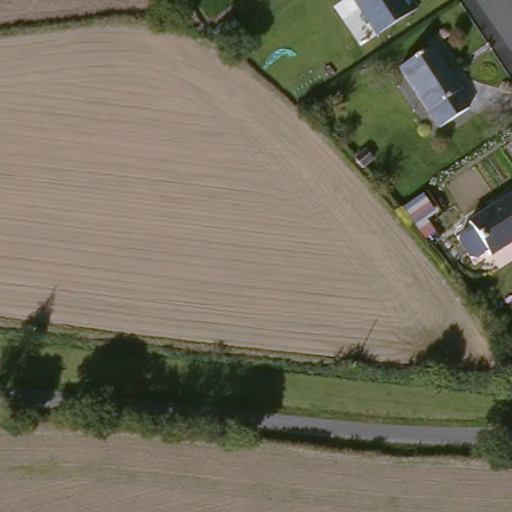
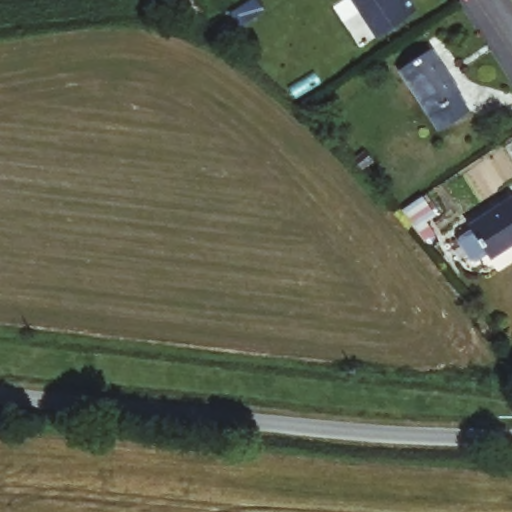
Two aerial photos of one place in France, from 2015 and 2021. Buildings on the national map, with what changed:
unchanged [(409,0),(413,6),(371,33),(350,0),(409,0)]
unchanged [(431,44),(464,89),(460,90),(473,108),(443,129),(399,66),(431,44)]
unchanged [(510,192),(512,194),(512,238),(489,254),(466,222),(510,192)]

